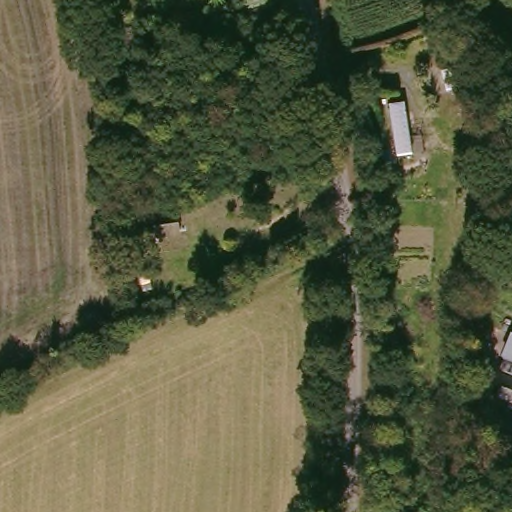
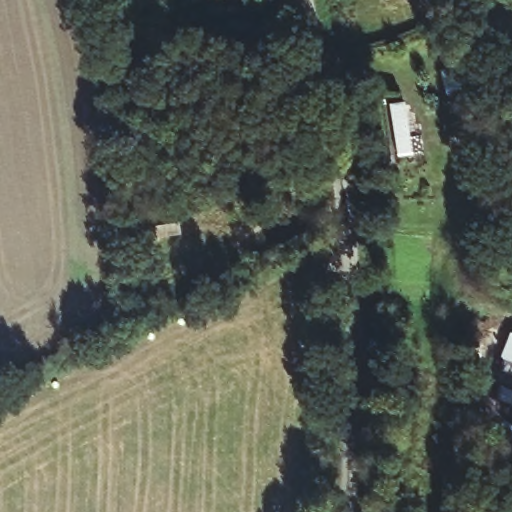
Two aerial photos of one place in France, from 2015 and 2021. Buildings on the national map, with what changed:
unchanged [(512,325),(512,376),(494,366),(509,323),(512,325)]

